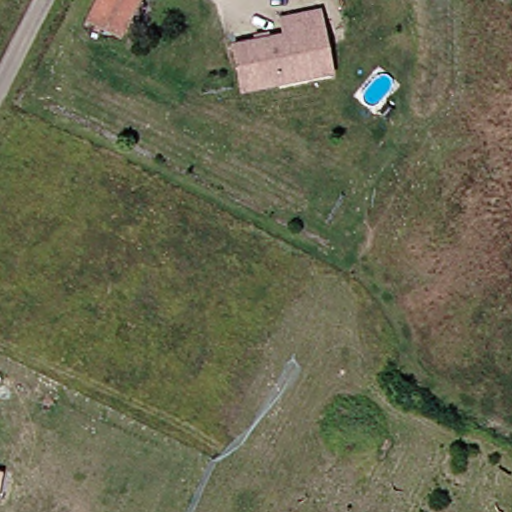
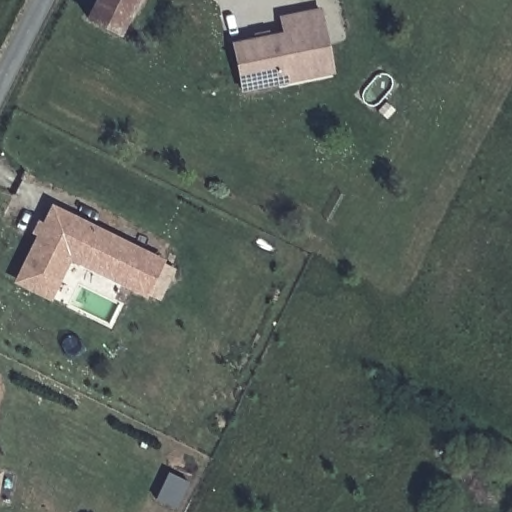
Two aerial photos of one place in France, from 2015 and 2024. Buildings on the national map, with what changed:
unchanged [(109,31),(81,16),(89,0),(125,0),(109,31)]
unchanged [(310,74),(235,90),(226,39),(272,30),(271,17),(315,8),(318,27),(327,70),(310,74)]
new [(165,258),(146,298),(70,260),(50,301),(12,280),(35,233),(31,230),(37,219),(42,222),(52,203),(165,258)]
unchanged [(2,471),(0,482),(0,470),(2,471)]

